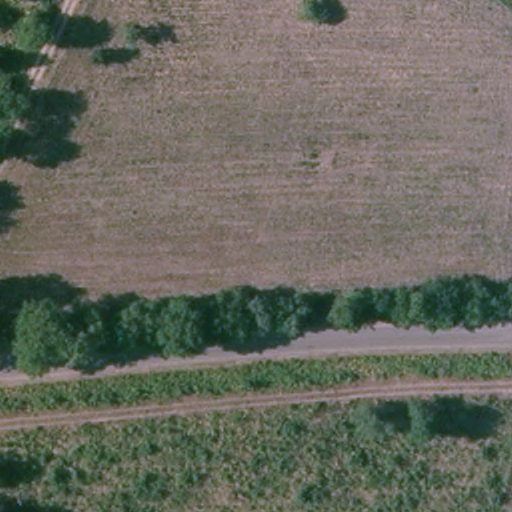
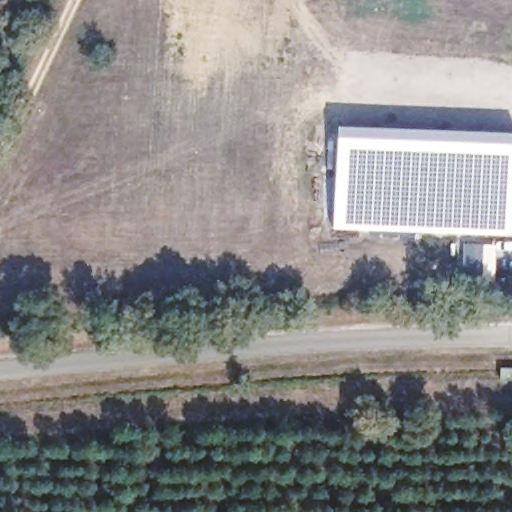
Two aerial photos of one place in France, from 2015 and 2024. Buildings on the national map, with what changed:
new [(512,131),(512,235),(330,228),(335,123),(512,131)]
new [(462,242),(495,244),(493,277),(460,275),(462,242)]

